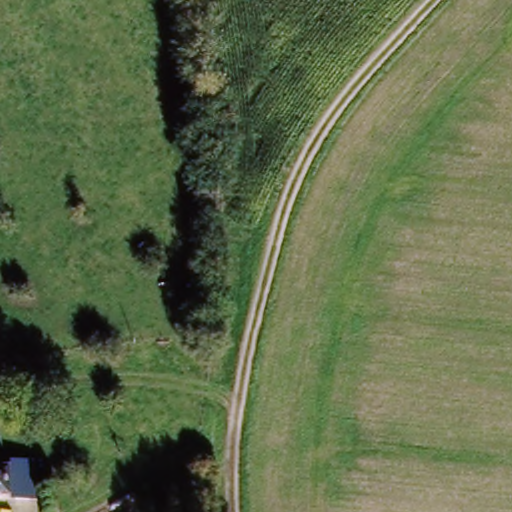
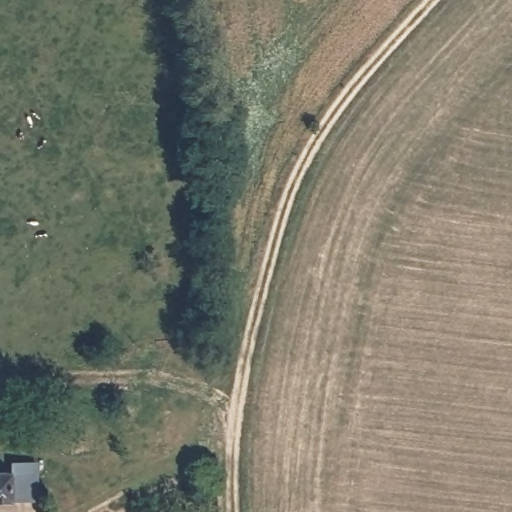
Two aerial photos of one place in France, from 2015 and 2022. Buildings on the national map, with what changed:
unchanged [(190,312),(192,354),(166,356),(164,313),(190,312)]
unchanged [(11,466),(35,459),(44,492),(20,500),(0,505),(0,481),(14,477),(11,466)]

